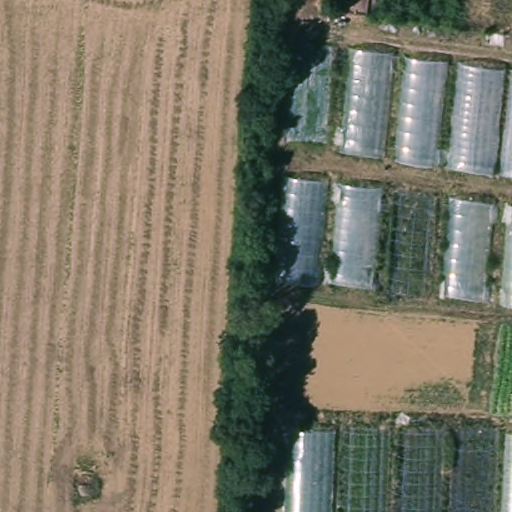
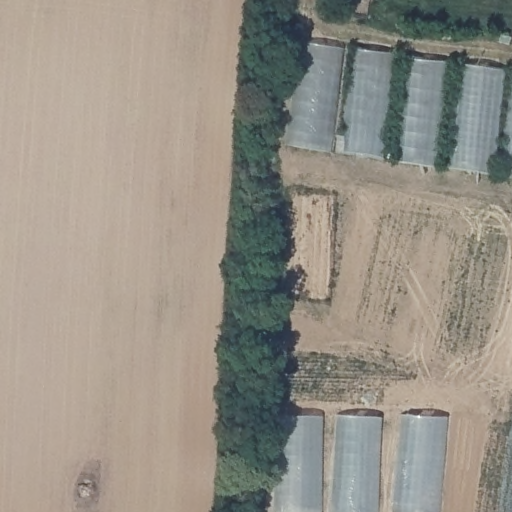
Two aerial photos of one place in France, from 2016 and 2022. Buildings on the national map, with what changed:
unchanged [(288,141),(302,35),(512,64),(512,176),(288,141)]
demolished [(276,277),(283,177),(512,205),(512,307),(276,277)]

